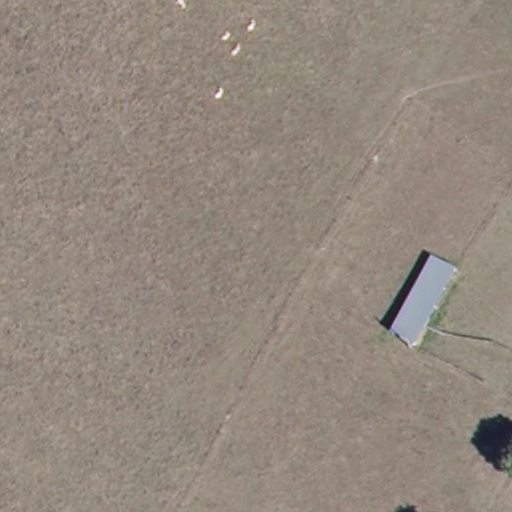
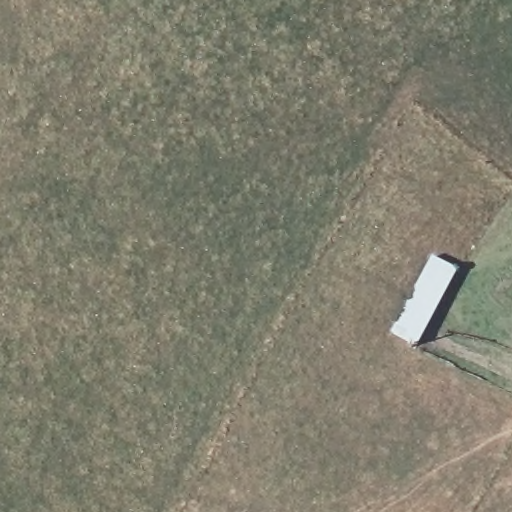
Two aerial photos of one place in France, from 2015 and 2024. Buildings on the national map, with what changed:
unchanged [(431,261),(457,273),(417,350),(393,337),(431,261)]

